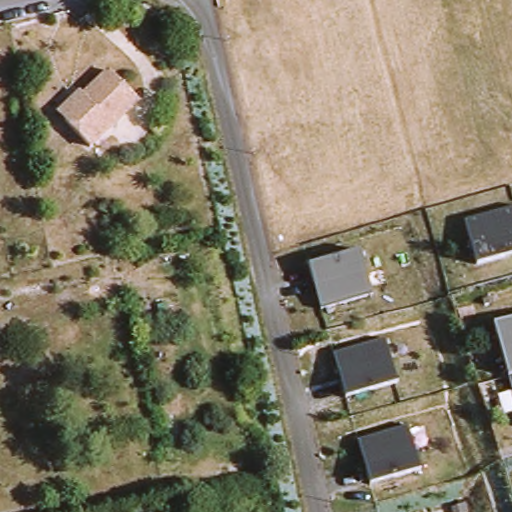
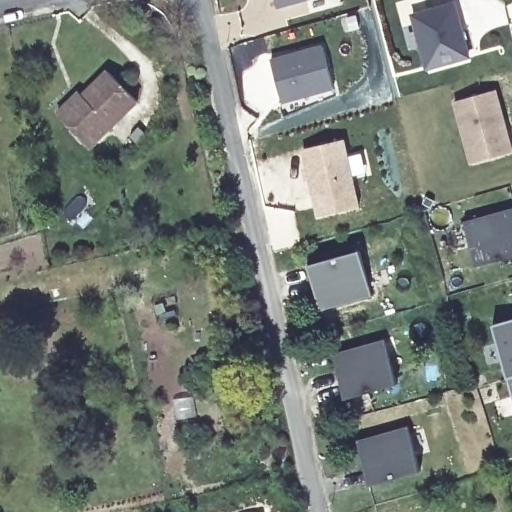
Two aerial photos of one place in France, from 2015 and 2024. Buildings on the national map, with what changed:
new [(272,0),(291,0),(273,5),(272,0)]
new [(447,0),(447,2),(450,1),(465,55),(423,66),(409,12),(424,9),(422,0),(447,0)]
new [(319,44),(331,85),(278,100),(267,58),(319,44)]
unchanged [(90,148),(64,121),(85,101),(81,97),(107,72),(137,102),(90,148)]
new [(470,165),(452,102),(496,90),(512,147),(512,153),(470,165)]
new [(355,205),(316,214),(307,177),(302,179),(298,166),(304,165),(300,146),(339,137),(355,205)]
unchanged [(476,265),(463,220),(512,206),(512,255),(476,265)]
unchanged [(373,299),(322,313),(308,268),(361,254),(373,299)]
unchanged [(503,381),(496,356),(488,328),(512,321),(512,378),(503,381)]
unchanged [(392,382),(394,387),(342,401),(341,396),(329,356),(381,342),(392,382)]
unchanged [(503,381),(512,378),(512,413),(503,381)]
unchanged [(417,474),(366,488),(353,443),(405,429),(417,474)]

